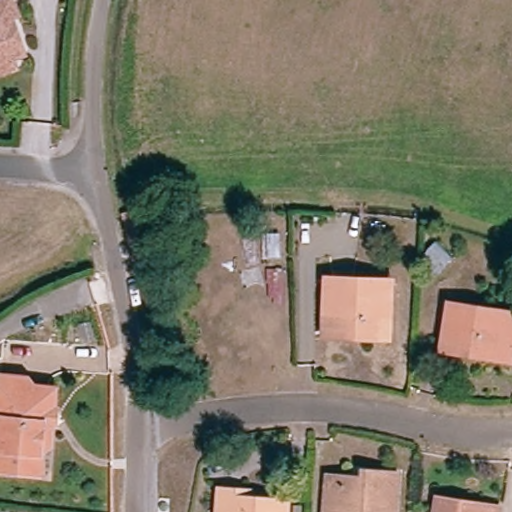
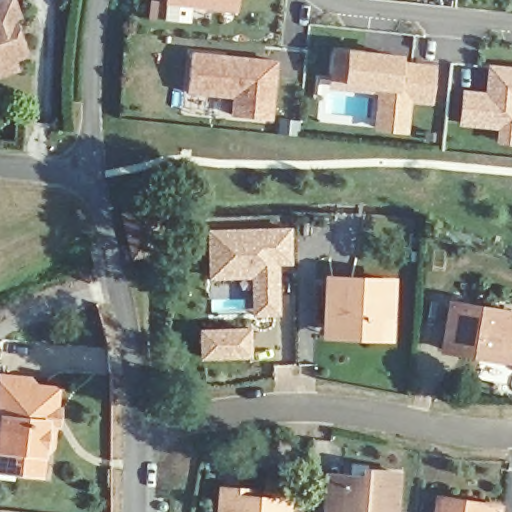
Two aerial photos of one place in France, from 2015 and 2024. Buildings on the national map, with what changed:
new [(165,4),(166,0),(239,0),(238,12),(165,4)]
unchanged [(0,70),(0,7),(11,2),(18,20),(13,22),(23,50),(26,60),(18,63),(0,70)]
new [(376,130),(377,114),(379,89),(331,84),(334,54),(398,60),(398,66),(433,70),(429,104),(408,101),(406,117),(404,132),(376,130)]
new [(231,117),(233,99),(188,95),(192,56),(218,59),(225,60),(275,65),(269,121),(231,117)]
new [(487,98),(489,70),(512,72),(512,130),(461,125),(464,95),(487,98)]
new [(498,144),(499,129),(512,130),(512,145),(498,144)]
unchanged [(154,213),(163,252),(134,259),(124,216),(153,210),(154,213)]
new [(292,225),(293,266),(279,266),(282,316),(252,317),(249,280),(207,280),(204,229),(292,225)]
unchanged [(366,338),(325,336),(328,285),(393,287),(391,345),(366,343),(366,338)]
unchanged [(512,316),(512,362),(444,351),(452,306),(512,316)]
new [(249,326),(250,359),(198,360),(198,328),(249,326)]
unchanged [(33,390),(50,391),(49,411),(41,410),(40,423),(47,425),(44,451),(36,458),(34,475),(9,472),(10,452),(0,451),(0,379),(26,381),(33,390)]
unchanged [(364,490),(364,480),(366,472),(400,475),(397,512),(326,512),(328,487),(364,490)]
unchanged [(288,512),(221,512),(222,495),(250,498),(249,505),(288,508),(288,512)]
unchanged [(439,500),(500,510),(500,512),(438,512),(439,500)]

